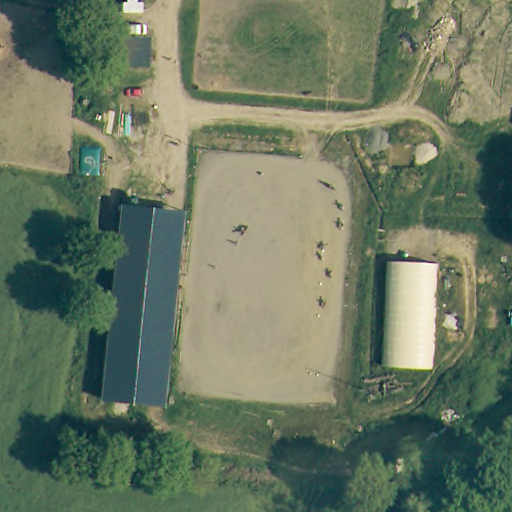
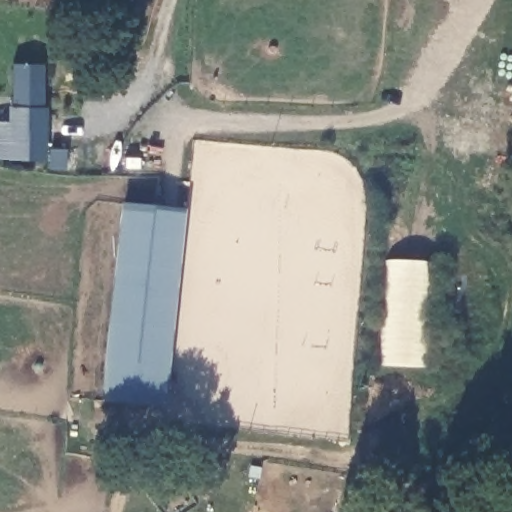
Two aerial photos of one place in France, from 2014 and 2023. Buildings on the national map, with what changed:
new [(6,124),(7,106),(11,106),(12,63),(44,63),(44,106),(48,106),(46,162),(0,160),(0,124),(6,124)]
unchanged [(166,406),(101,400),(122,203),(185,210),(166,406)]
unchanged [(432,263),(428,368),(387,365),(390,260),(432,263)]

